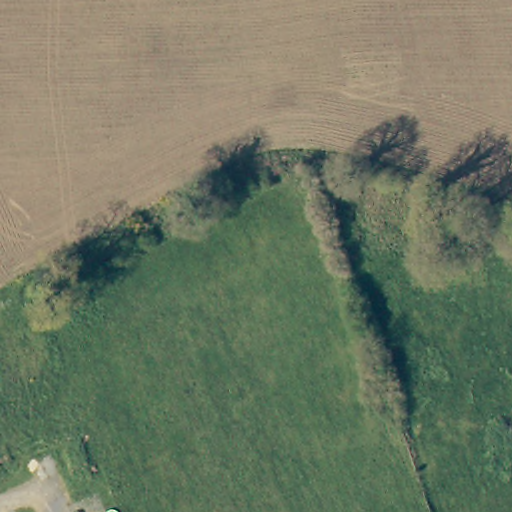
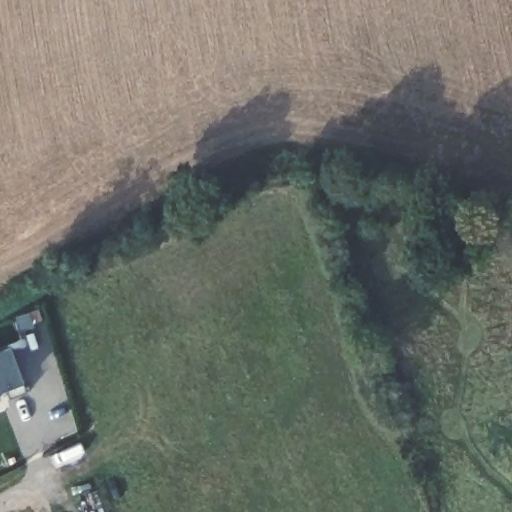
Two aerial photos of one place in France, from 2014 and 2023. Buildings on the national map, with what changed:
new [(24,384),(0,393),(0,352),(10,348),(24,384)]

